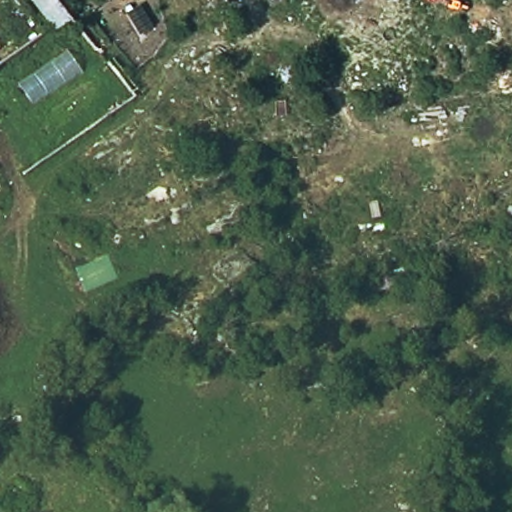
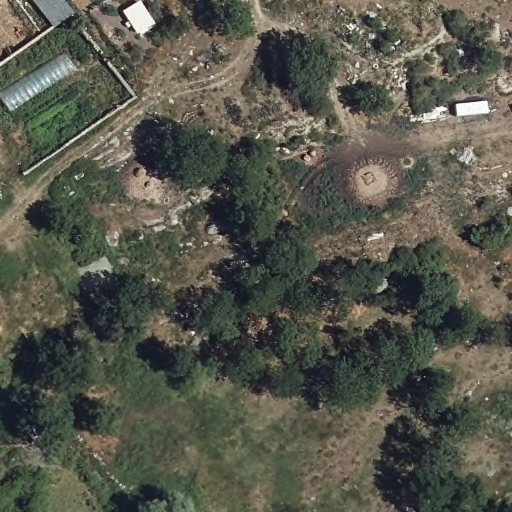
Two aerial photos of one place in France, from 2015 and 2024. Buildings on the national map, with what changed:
unchanged [(55,28),(33,0),(60,0),(70,15),(55,28)]

